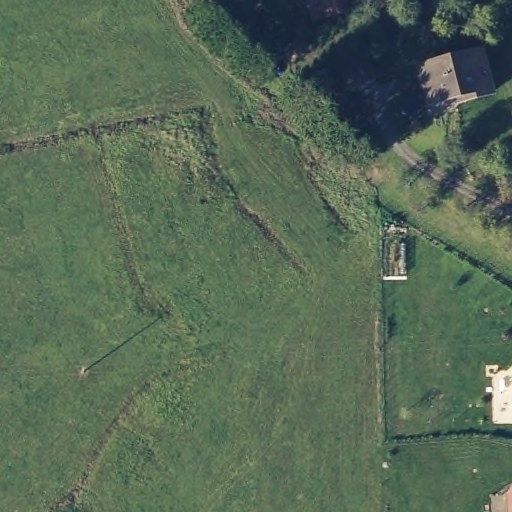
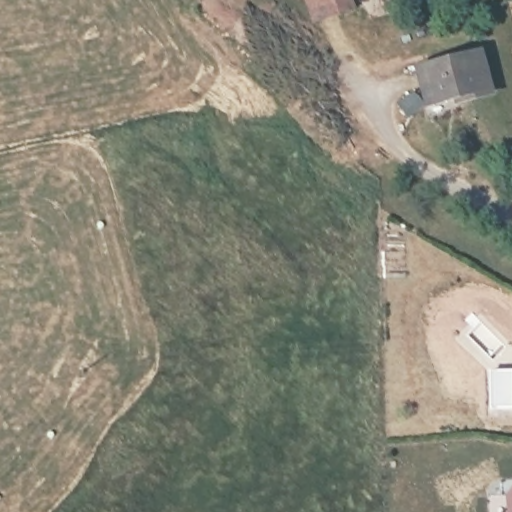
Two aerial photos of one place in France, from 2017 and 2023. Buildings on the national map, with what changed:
unchanged [(334,8),(334,7),(309,17),(304,0),(348,0),(349,4),(334,8)]
unchanged [(480,42),(491,84),(459,92),(458,87),(428,95),(419,59),(480,42)]
unchanged [(512,487),(512,512),(504,512),(503,495),(512,487)]

